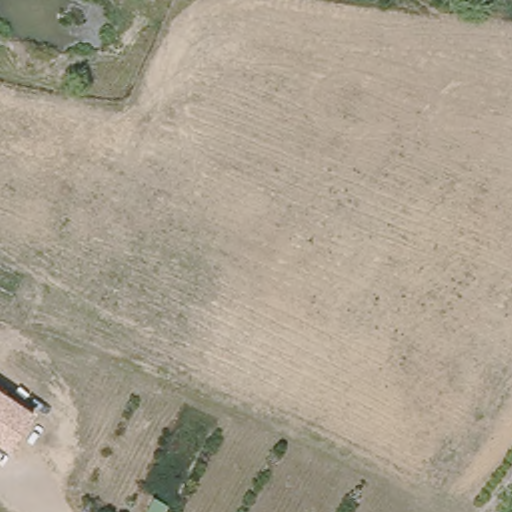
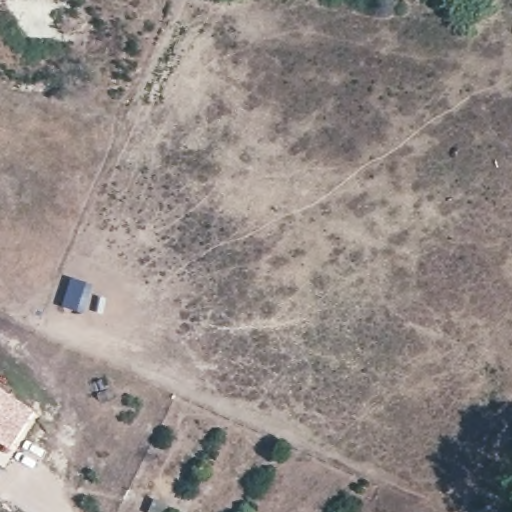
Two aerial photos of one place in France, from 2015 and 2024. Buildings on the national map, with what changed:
unchanged [(21,445),(0,431),(0,378),(46,407),(21,445)]

